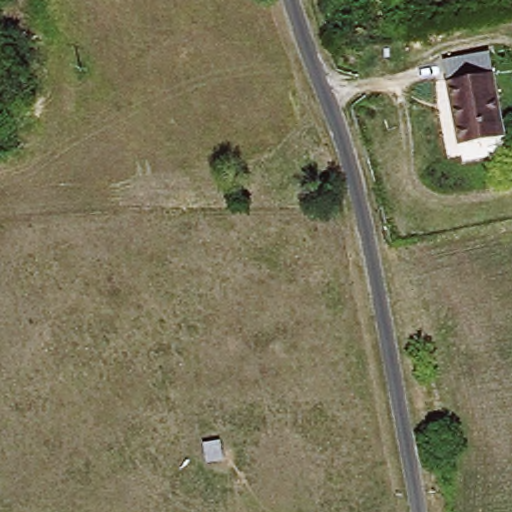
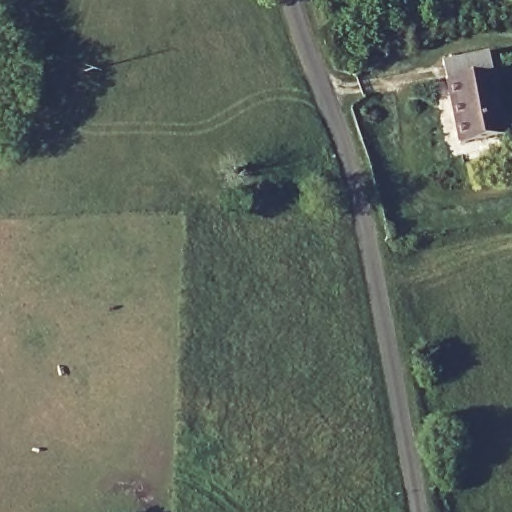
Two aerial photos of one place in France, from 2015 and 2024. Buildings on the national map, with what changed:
unchanged [(501,123),(504,135),(458,144),(448,88),(442,60),(485,51),(501,123)]

